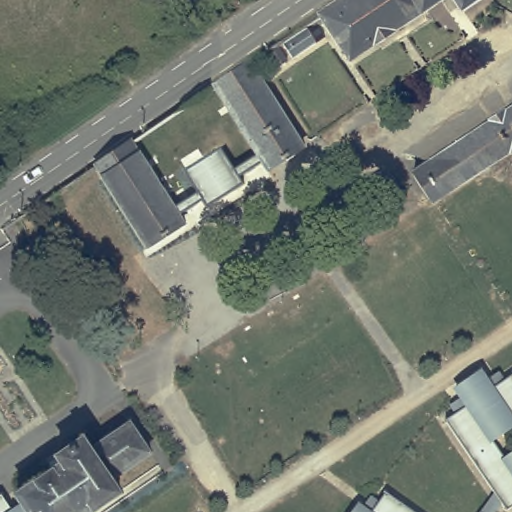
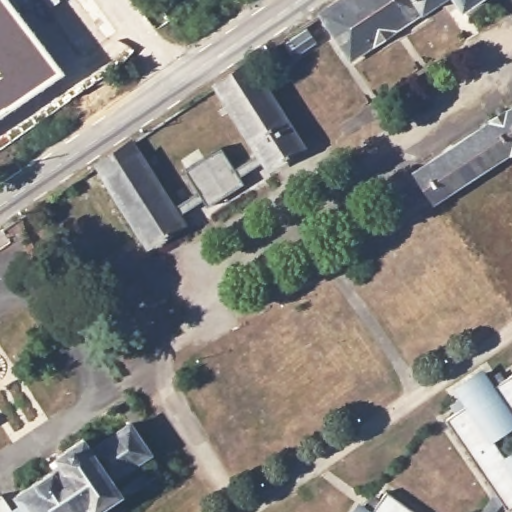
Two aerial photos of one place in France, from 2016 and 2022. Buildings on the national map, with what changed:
new [(0,0),(8,0),(66,77),(0,122),(0,0)]
unchanged [(320,11),(337,0),(436,0),(350,58),(320,11)]
unchanged [(475,0),(462,9),(452,15),(442,0),(475,0)]
unchanged [(317,39),(295,55),(283,37),(287,34),(305,21),(317,39)]
unchanged [(277,41),(278,40),(290,57),(280,64),(268,47),(277,41)]
unchanged [(247,64),(301,145),(266,169),(225,107),(211,87),(247,64)]
unchanged [(433,209),(412,174),(512,107),(512,155),(433,209)]
unchanged [(181,227),(147,250),(91,169),(126,145),(140,165),(181,227)]
unchanged [(478,370),(482,375),(495,367),(500,375),(510,368),(512,371),(512,500),(502,506),(440,416),(450,410),(445,401),(457,393),(452,386),(478,370)]
unchanged [(84,440),(91,451),(131,425),(150,455),(110,481),(119,494),(92,512),(0,512),(0,496),(2,495),(13,511),(24,505),(16,495),(54,470),(49,462),(84,440)]
unchanged [(415,512),(351,512),(357,503),(358,504),(367,492),(375,497),(382,488),(415,512)]

